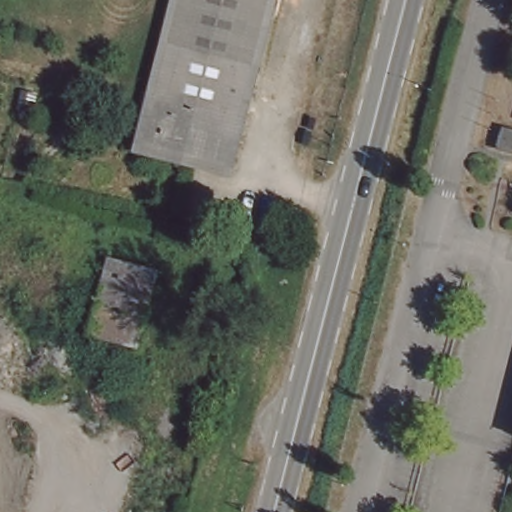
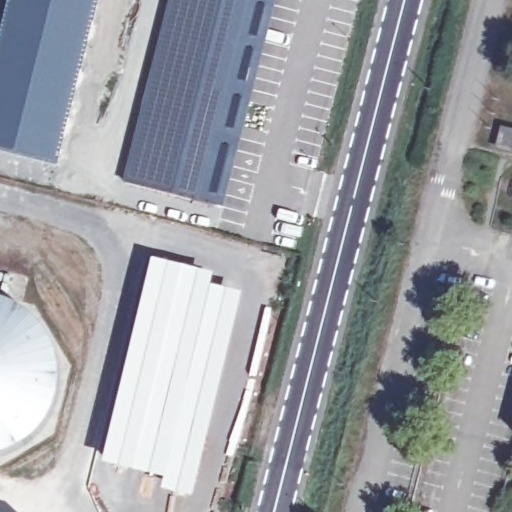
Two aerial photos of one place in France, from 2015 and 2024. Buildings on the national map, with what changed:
new [(8,0),(98,0),(57,165),(0,152),(0,32),(8,0)]
unchanged [(134,152),(137,142),(174,0),(248,0),(275,7),(272,12),(264,45),(232,169),(229,177),(134,152)]
unchanged [(275,7),(248,0),(276,0),(275,7)]
unchanged [(512,147),(500,145),(504,131),(512,133),(512,147)]
new [(152,259),(215,273),(212,285),(244,294),(194,500),(160,493),(163,481),(102,465),(152,259)]
demolished [(157,271),(140,334),(95,322),(110,260),(157,271)]
demolished [(228,293),(222,318),(192,310),(198,286),(228,293)]

